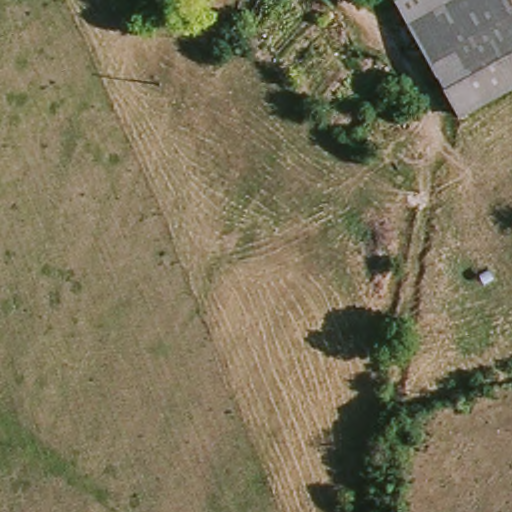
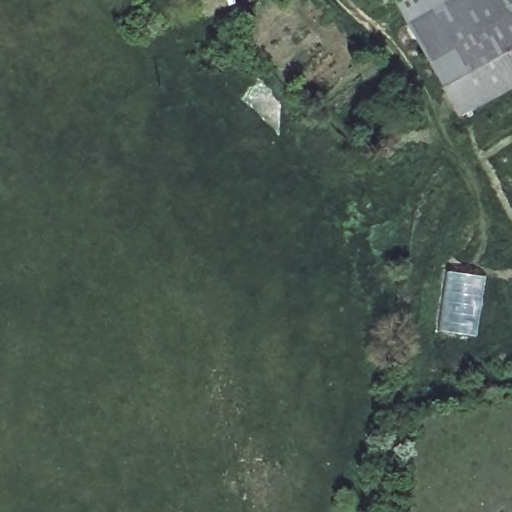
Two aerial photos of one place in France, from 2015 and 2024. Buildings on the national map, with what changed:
unchanged [(391,0),(443,0),(401,20),(391,0)]
unchanged [(414,45),(401,20),(443,0),(469,0),(475,14),(414,45)]
unchanged [(469,0),(504,0),(512,16),(512,21),(424,65),(414,45),(475,14),(469,0)]
unchanged [(449,115),(424,65),(512,21),(512,84),(449,115)]
new [(445,268),(487,275),(477,337),(435,330),(445,268)]

